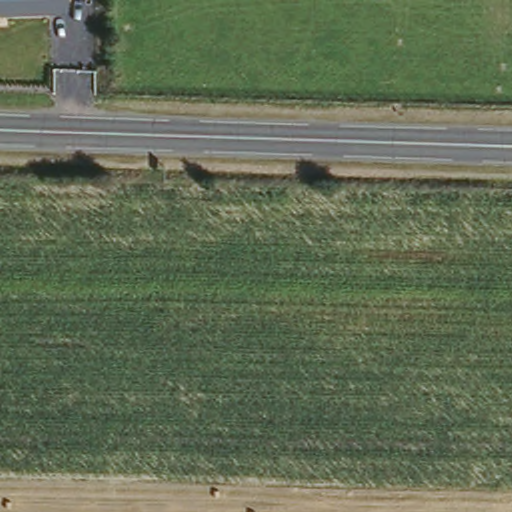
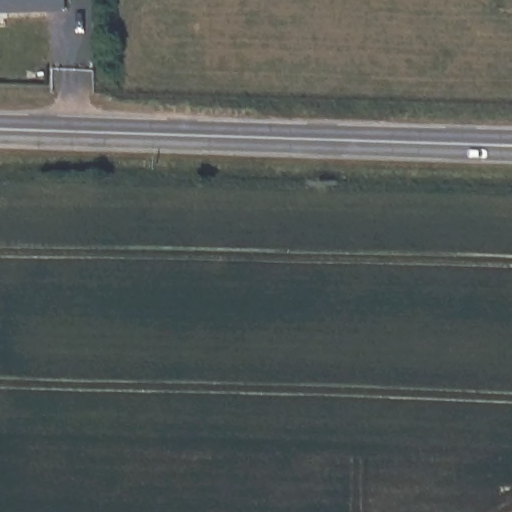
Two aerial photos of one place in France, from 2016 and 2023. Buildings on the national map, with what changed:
unchanged [(67,11),(0,12),(0,0),(67,0),(67,11)]

